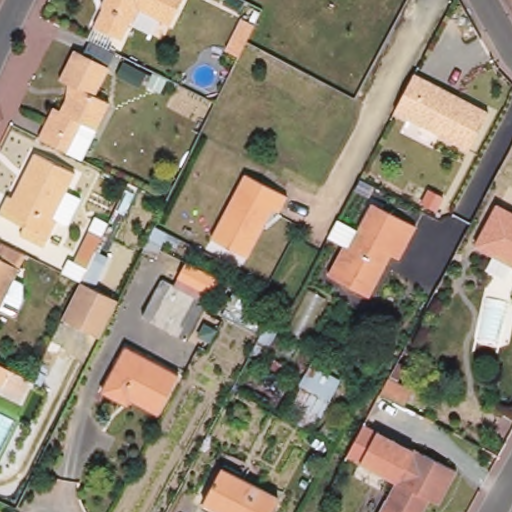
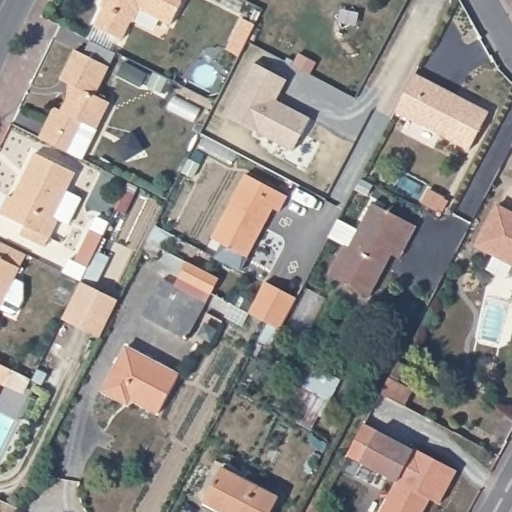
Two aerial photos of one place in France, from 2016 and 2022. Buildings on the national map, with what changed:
unchanged [(138,10),(132,23),(130,22),(121,41),(93,28),(102,9),(100,8),(104,0),(181,0),(168,25),(138,10)]
unchanged [(254,27),(246,42),(245,44),(238,58),(224,51),(240,20),(254,27)]
unchanged [(62,82),(76,52),(110,69),(96,97),(110,104),(96,130),(83,124),(69,153),(41,139),(56,109),(64,112),(76,88),(62,82)]
new [(254,65),(286,82),(275,102),(309,120),(292,152),(226,118),(254,65)]
unchanged [(413,74),(488,111),(468,149),(394,112),(413,74)]
unchanged [(76,172),(62,202),(77,209),(69,225),(59,220),(50,238),(1,215),(10,197),(14,199),(37,154),(76,172)]
unchanged [(287,197),(279,213),(273,209),(248,259),(212,240),(245,176),(287,197)]
unchanged [(478,242),(499,201),(512,208),(512,260),(478,242)]
unchanged [(392,254),(370,296),(329,275),(345,246),(329,238),(338,220),(358,231),(373,203),(416,226),(404,250),(400,258),(392,254)]
unchanged [(96,217),(109,223),(87,268),(75,262),(96,217)]
unchanged [(0,304),(0,262),(16,270),(0,304)]
unchanged [(144,316),(164,279),(170,267),(213,290),(207,302),(187,339),(144,316)]
unchanged [(80,282),(118,301),(100,336),(62,318),(80,282)]
new [(266,282),(298,298),(281,329),(250,313),(266,282)]
unchanged [(121,401),(102,391),(126,347),(178,374),(157,411),(132,398),(128,405),(121,401)]
unchanged [(340,380),(331,398),(329,397),(311,429),(296,421),(303,407),(292,400),(311,364),(340,380)]
unchanged [(380,394),(388,378),(413,391),(404,407),(380,394)]
unchanged [(0,392),(0,385),(3,386),(0,392)]
unchanged [(417,449),(460,471),(442,504),(433,499),(427,512),(384,512),(400,482),(364,463),(352,457),(359,445),(369,426),(380,432),(416,450),(417,449)]
unchanged [(278,501),(272,512),(212,512),(204,508),(223,472),(278,501)]

